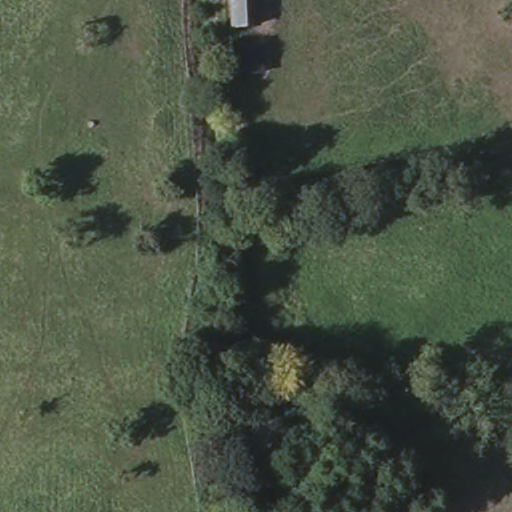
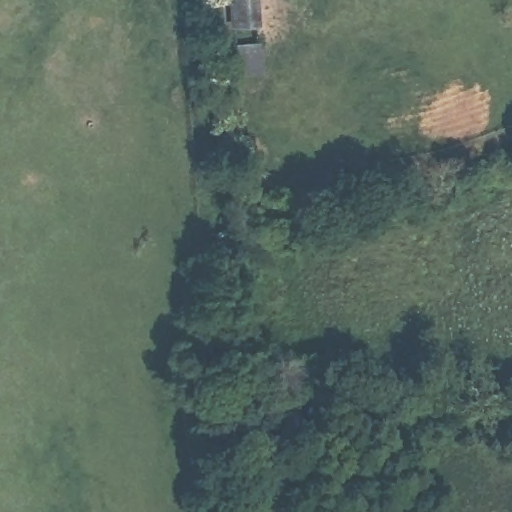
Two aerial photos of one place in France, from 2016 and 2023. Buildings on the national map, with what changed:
unchanged [(260,22),(234,24),(233,0),(259,0),(260,22)]

